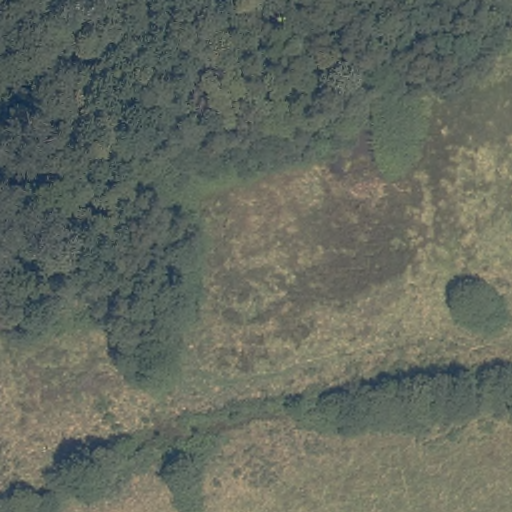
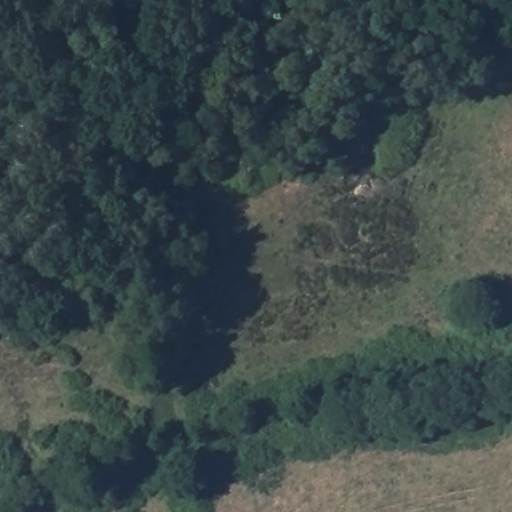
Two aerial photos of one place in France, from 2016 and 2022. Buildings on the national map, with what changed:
[]

